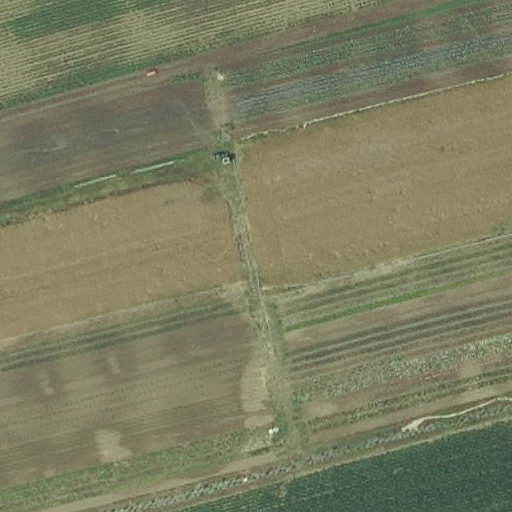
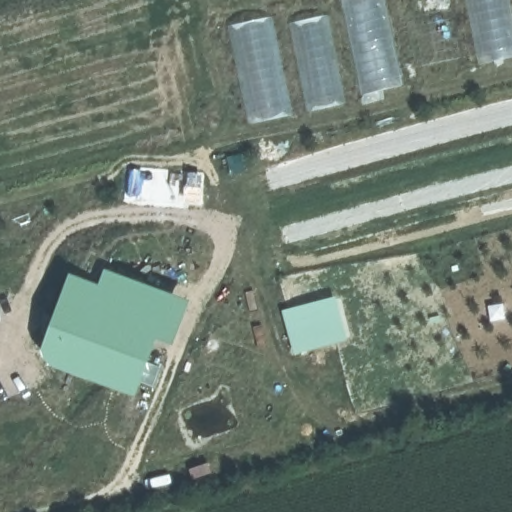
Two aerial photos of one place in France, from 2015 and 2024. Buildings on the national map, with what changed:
new [(360,96),(340,0),(385,0),(402,85),(360,96)]
new [(512,57),(477,64),(464,0),(510,0),(512,10),(512,57)]
new [(329,15),(347,105),(305,114),(287,24),(329,15)]
new [(227,27),(273,17),(294,116),(246,125),(227,27)]
new [(52,313),(68,272),(97,283),(103,267),(190,300),(172,345),(156,339),(147,360),(160,365),(152,388),(139,383),(133,397),(58,369),(37,358),(52,313)]
new [(285,311),(335,297),(346,339),(296,352),(285,311)]

